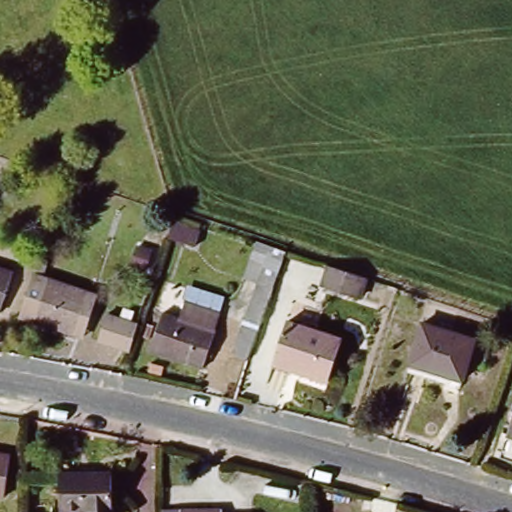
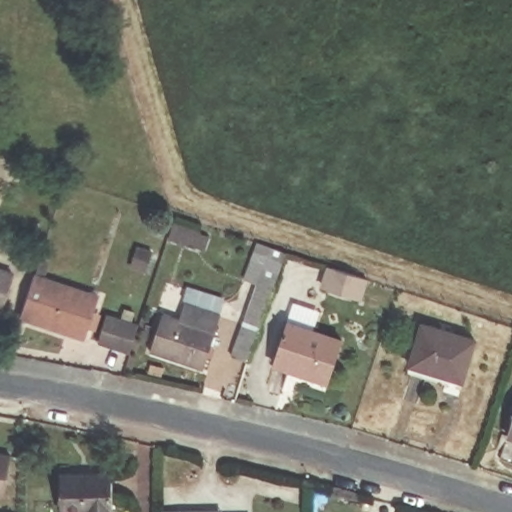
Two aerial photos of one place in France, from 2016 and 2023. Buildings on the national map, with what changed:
unchanged [(256,236),(268,240),(265,251),(252,247),(256,236)]
unchanged [(255,293),(272,241),(290,247),(273,299),(256,351),(242,348),(260,294),(255,293)]
unchanged [(16,272),(15,274),(2,312),(0,312),(0,267),(16,272)]
unchanged [(328,267),(365,279),(360,296),(323,284),(328,267)]
unchanged [(81,334),(67,330),(19,315),(33,277),(34,273),(82,288),(95,293),(81,334)]
unchanged [(111,310),(141,320),(132,348),(102,339),(111,310)]
unchanged [(166,310),(218,326),(207,362),(154,346),(166,310)]
unchanged [(426,324),(475,339),(460,384),(413,369),(426,324)]
unchanged [(290,327),(343,342),(330,382),(277,365),(290,327)]
unchanged [(13,452),(5,495),(0,495),(0,450),(13,452)]
unchanged [(116,475),(115,512),(65,512),(63,477),(116,475)]
unchanged [(189,510),(189,512),(159,512),(159,509),(189,510)]
unchanged [(221,511),(220,512),(189,512),(189,510),(221,511)]

